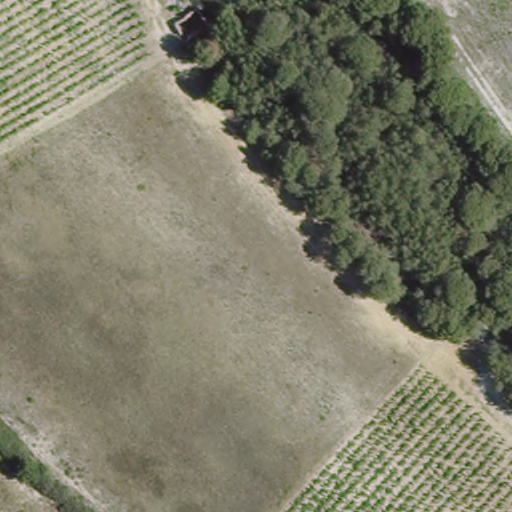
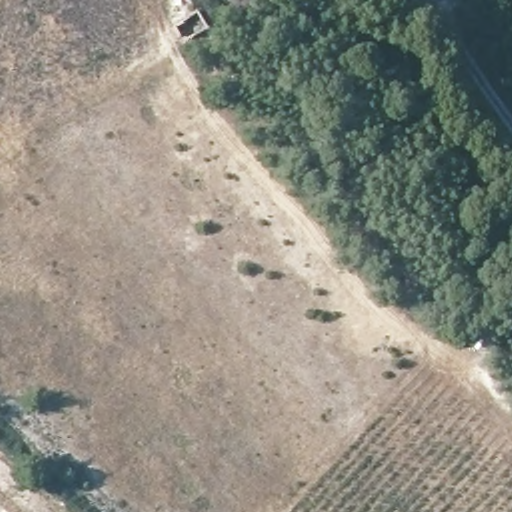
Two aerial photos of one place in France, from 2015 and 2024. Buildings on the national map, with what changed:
unchanged [(198,3),(209,23),(191,35),(178,14),(198,3)]

